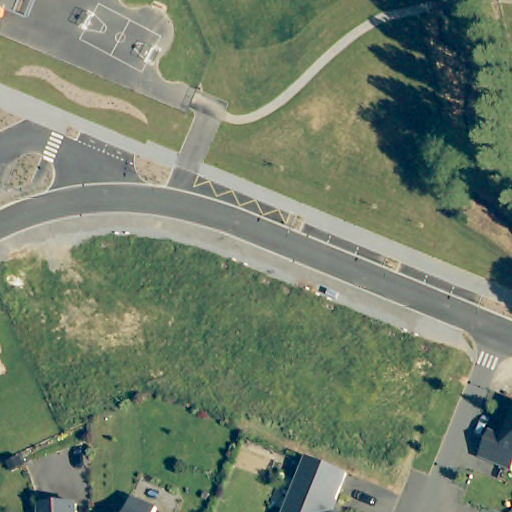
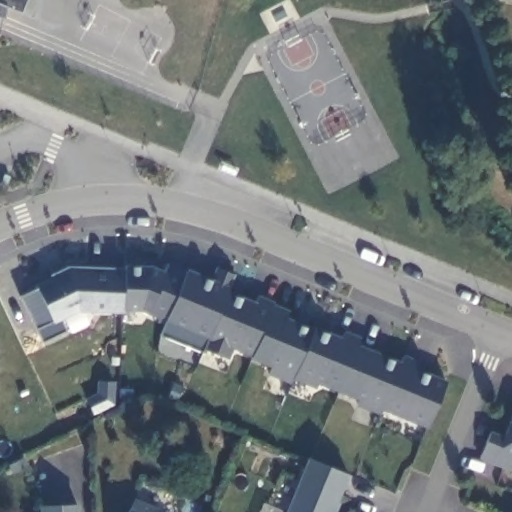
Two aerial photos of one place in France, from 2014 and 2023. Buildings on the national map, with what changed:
unchanged [(5,3),(2,16),(0,22),(0,0),(38,0),(31,16),(5,3)]
new [(203,351),(160,333),(167,319),(148,312),(139,310),(122,309),(77,309),(61,318),(65,329),(44,339),(20,293),(38,285),(36,282),(69,263),(126,267),(126,262),(155,265),(166,270),(170,261),(212,277),(215,267),(234,275),(228,286),(231,290),(205,347),(203,351)]
new [(251,357),(233,348),(229,356),(205,347),(231,290),(257,301),(260,295),(275,303),(251,357)]
new [(293,378),(291,381),(270,373),(272,364),(251,357),(275,303),(290,309),(287,318),(314,327),(293,378)]
new [(429,427),(385,410),(383,413),(358,404),(360,398),(319,384),(317,387),(293,378),(314,327),(340,337),(345,329),(360,335),(358,343),(402,360),(405,354),(421,360),(417,368),(447,380),(429,427)]
unchanged [(1,346),(0,347),(0,343),(1,346)]
unchanged [(496,427),(510,433),(512,429),(512,463),(486,452),(487,448),(496,427)]
unchanged [(339,512),(293,512),(314,460),(353,476),(339,512)]
unchanged [(163,512),(134,512),(139,500),(163,510),(163,512)]
unchanged [(48,512),(47,507),(82,505),(83,512),(48,512)]

